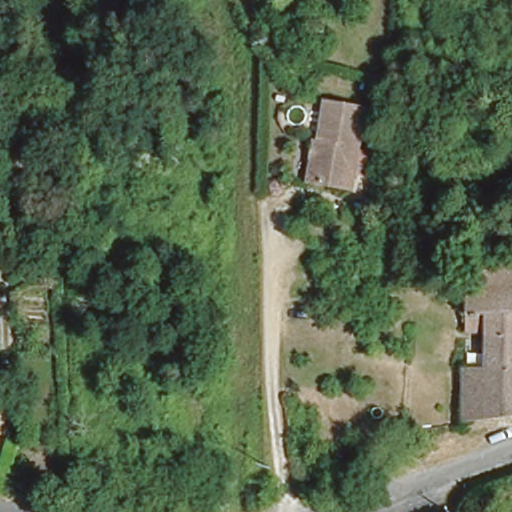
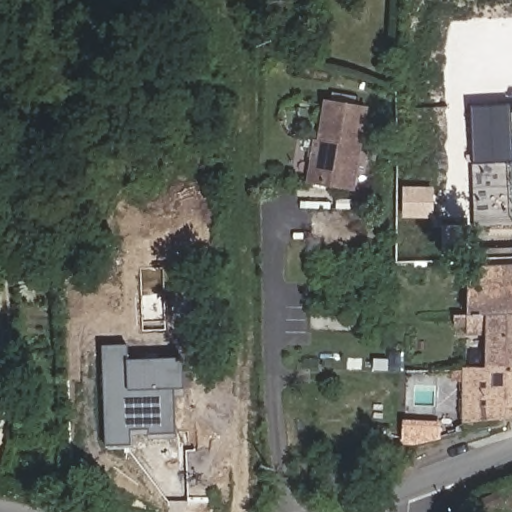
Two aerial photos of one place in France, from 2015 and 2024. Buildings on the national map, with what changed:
unchanged [(321,137),(325,96),(363,101),(357,178),(310,173),(312,137),(321,137)]
new [(472,162),(470,107),(508,106),(511,161),(472,162)]
new [(402,219),(401,187),(433,187),(433,219),(402,219)]
unchanged [(488,360),(486,329),(461,327),(462,281),(512,279),(512,417),(506,418),(505,410),(454,415),(452,362),(488,360)]
new [(127,433),(128,445),(105,446),(100,346),(125,344),(126,360),(181,358),(183,389),(172,389),(174,432),(127,433)]

